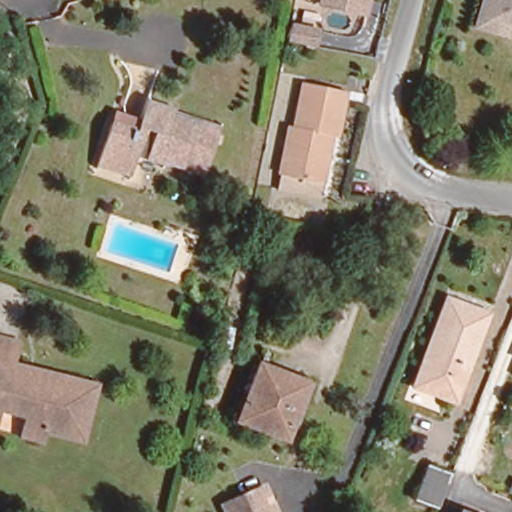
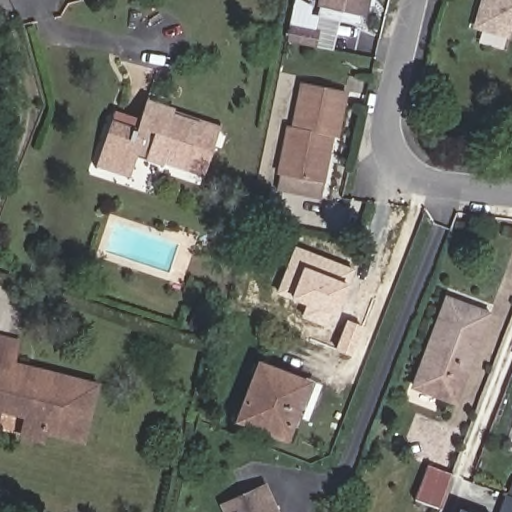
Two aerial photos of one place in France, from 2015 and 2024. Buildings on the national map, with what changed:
unchanged [(319,0),(371,0),(367,18),(317,7),(319,0)]
unchanged [(476,0),(481,2),(482,0),(512,0),(512,19),(509,18),(505,29),(503,36),(468,26),(476,0)]
unchanged [(285,43),(288,21),(319,26),(316,49),(285,43)]
unchanged [(290,128),(295,129),(305,84),(346,91),(337,137),(333,136),(320,198),(277,189),(290,128)]
unchanged [(166,121),(164,128),(188,135),(189,132),(211,139),(196,184),(157,170),(155,174),(128,165),(121,184),(89,173),(102,134),(105,124),(131,133),(138,112),(166,121)]
new [(337,318),(290,299),(291,294),(279,290),(295,248),(347,270),(343,282),(349,284),(337,318)]
unchanged [(447,309),(487,324),(453,410),(438,404),(415,395),(447,309)]
unchanged [(0,411),(0,340),(12,344),(7,364),(30,371),(90,386),(77,439),(41,431),(39,440),(19,435),(23,417),(0,411)]
unchanged [(307,384),(287,437),(240,419),(261,365),(307,384)]
unchanged [(438,509),(416,499),(429,464),(452,474),(438,509)]
unchanged [(218,509),(257,491),(268,512),(219,512),(218,509)]
unchanged [(460,509),(469,512),(459,512),(460,509)]

